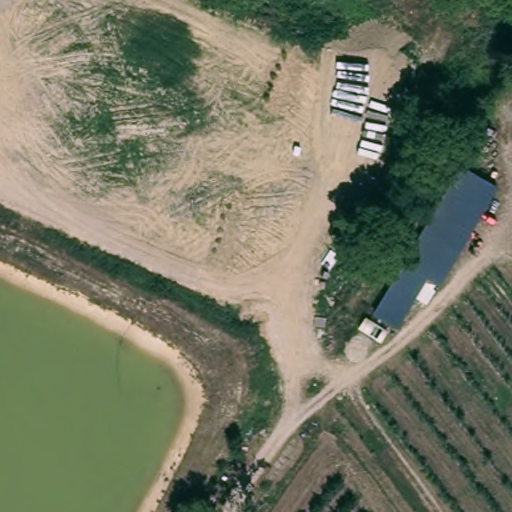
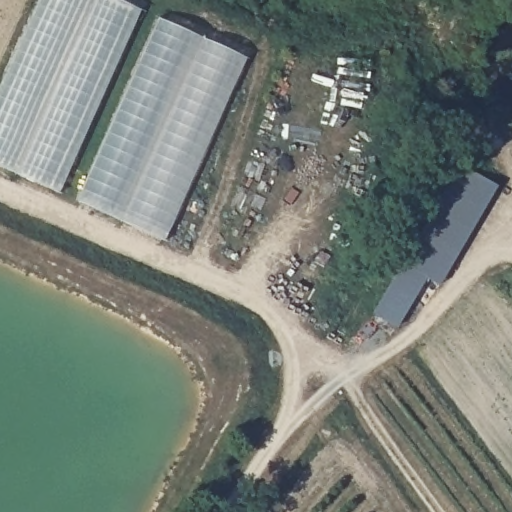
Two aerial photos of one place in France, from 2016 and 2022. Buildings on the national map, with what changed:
new [(0,88),(39,0),(117,0),(138,10),(57,194),(0,167),(0,88)]
new [(164,241),(77,200),(158,18),(244,59),(164,241)]
unchanged [(372,315),(460,166),(497,187),(439,286),(426,278),(397,330),(372,315)]

